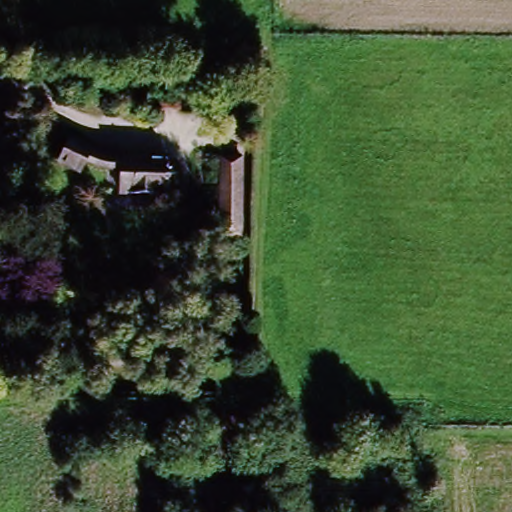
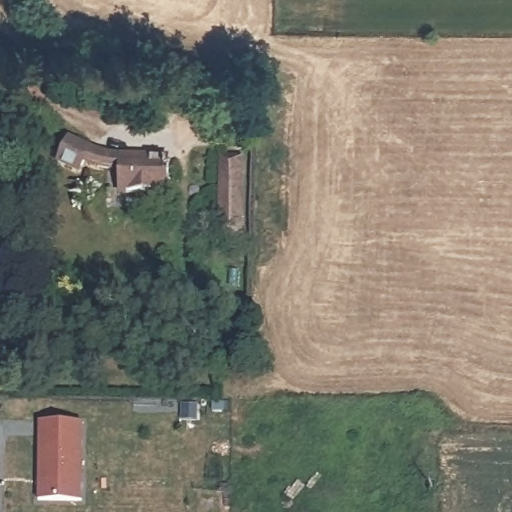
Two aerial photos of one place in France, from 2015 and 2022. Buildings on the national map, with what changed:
unchanged [(163,109),(164,75),(185,76),(196,76),(196,85),(185,85),(185,110),(163,109)]
unchanged [(96,176),(85,173),(80,180),(57,170),(70,145),(108,163),(119,163),(118,178),(96,176)]
unchanged [(168,165),(168,203),(117,202),(118,178),(119,163),(168,165)]
unchanged [(221,164),(242,165),(240,241),(218,240),(221,164)]
new [(40,422),(82,423),(80,503),(37,502),(40,422)]

